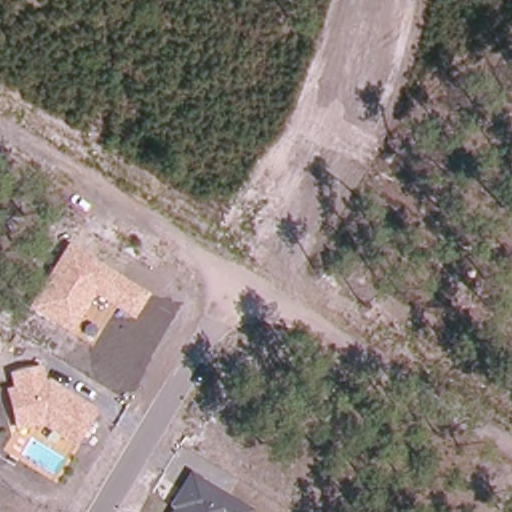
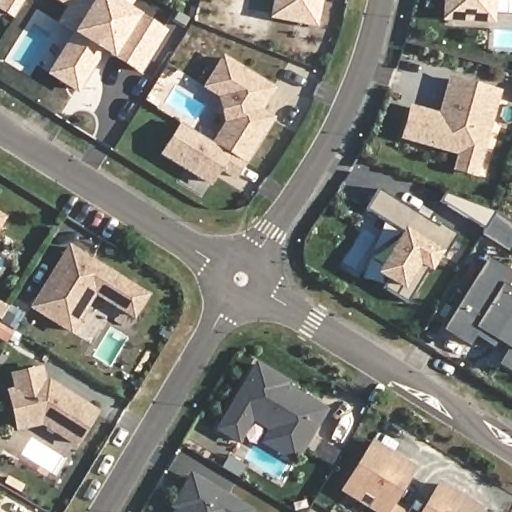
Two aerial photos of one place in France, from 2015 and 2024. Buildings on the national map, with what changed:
new [(25,0),(14,19),(0,11),(0,0),(25,0)]
new [(55,24),(65,7),(53,0),(115,0),(166,31),(137,75),(111,59),(102,53),(77,94),(45,74),(70,33),(55,24)]
new [(269,18),(272,0),(322,0),(317,27),(269,18)]
new [(453,16),(445,16),(446,0),(493,0),(492,19),(453,16)]
new [(493,0),(512,0),(512,13),(492,12),(493,0)]
new [(223,124),(218,98),(204,88),(226,54),(277,88),(262,110),(275,118),(235,180),(220,171),(212,187),(161,156),(182,123),(212,142),(223,124)]
new [(448,75),(502,90),(477,178),(452,171),(457,155),(401,140),(408,105),(438,113),(448,75)]
new [(379,190),(438,227),(440,224),(457,235),(446,255),(442,253),(430,272),(407,303),(383,289),(387,281),(375,274),(401,233),(366,210),(379,190)]
new [(482,231),(496,210),(512,220),(512,240),(507,247),(482,231)]
new [(7,217),(0,228),(0,213),(7,217)]
unchanged [(27,309),(67,244),(150,294),(134,320),(92,296),(72,333),(27,309)]
new [(475,332),(468,342),(446,327),(488,259),(511,273),(503,285),(512,291),(512,369),(501,362),(511,345),(497,336),(492,343),(484,338),(475,332)]
new [(291,381),(288,384),(330,408),(295,465),(259,445),(267,430),(253,422),(240,444),(215,430),(256,360),(291,381)]
unchanged [(45,380),(51,379),(99,410),(76,446),(42,425),(16,431),(6,389),(12,388),(9,373),(42,367),(45,380)]
new [(340,491),(372,440),(417,466),(394,506),(404,512),(374,512),(340,491)]
unchanged [(174,510),(169,507),(191,472),(254,510),(253,512),(172,512),(174,510)]
new [(440,480),(485,508),(483,512),(420,512),(440,480)]

